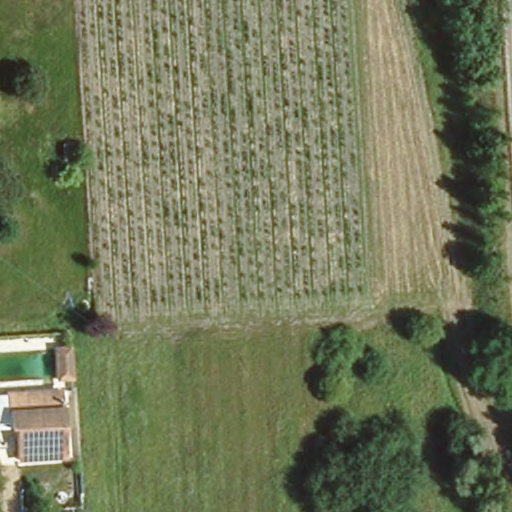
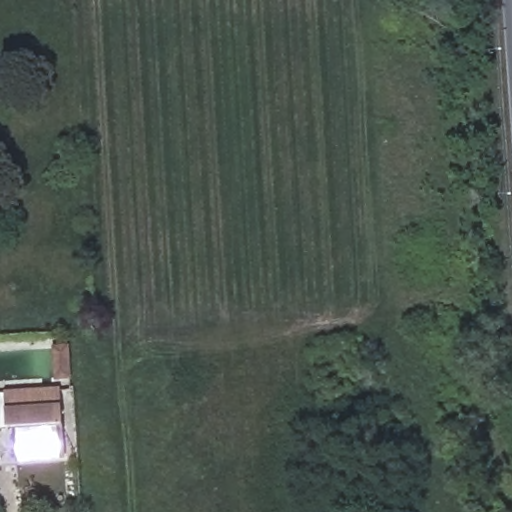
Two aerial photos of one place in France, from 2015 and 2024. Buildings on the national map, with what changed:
unchanged [(55,389),(59,453),(15,456),(12,423),(5,424),(5,394),(55,389)]

